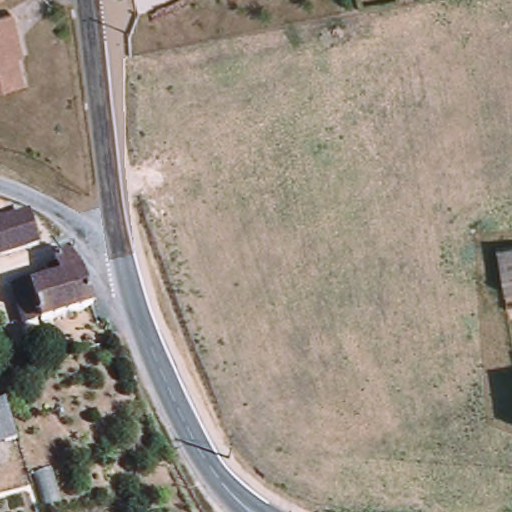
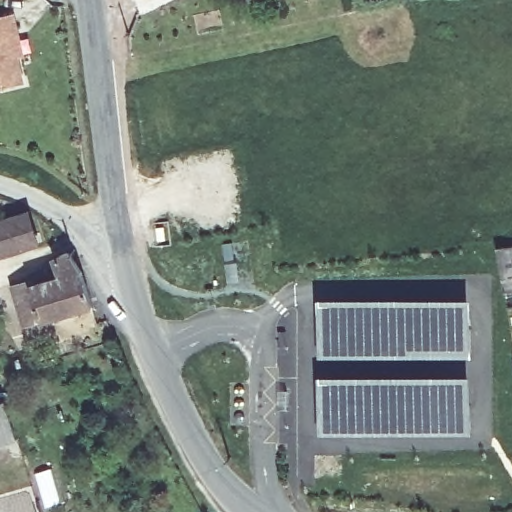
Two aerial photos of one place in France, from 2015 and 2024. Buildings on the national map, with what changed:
unchanged [(0,0),(3,0),(3,1),(0,2),(0,0)]
unchanged [(0,16),(12,14),(16,30),(22,56),(17,57),(22,84),(0,88),(0,16)]
unchanged [(0,258),(0,223),(28,215),(39,246),(0,258)]
unchanged [(505,292),(497,247),(512,245),(512,291),(505,292)]
unchanged [(80,275),(87,294),(92,306),(22,327),(12,289),(29,283),(30,288),(49,282),(45,270),(55,266),(52,261),(68,252),(80,275)]
new [(320,301),(471,301),(470,350),(409,350),(409,354),(321,356),(320,301)]
new [(320,377),(471,377),(469,432),(321,433),(320,377)]
unchanged [(17,439),(0,444),(0,404),(5,402),(17,439)]

